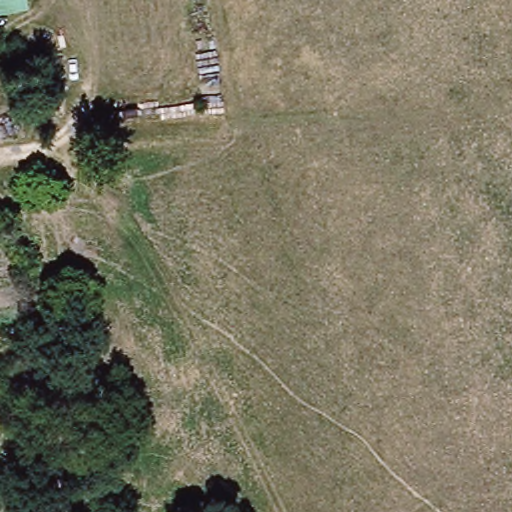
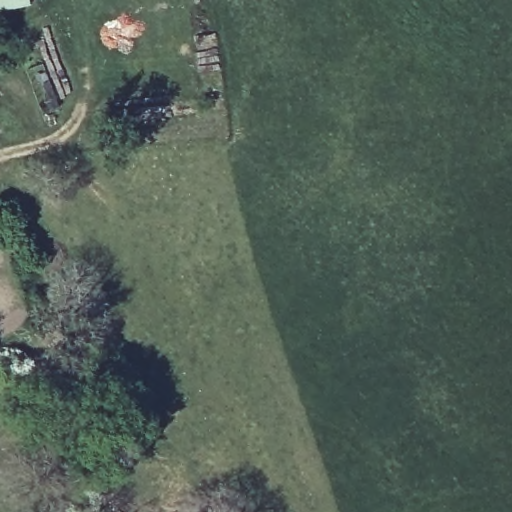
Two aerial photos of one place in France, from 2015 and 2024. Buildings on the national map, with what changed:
unchanged [(35,0),(36,6),(3,12),(0,0),(35,0)]

